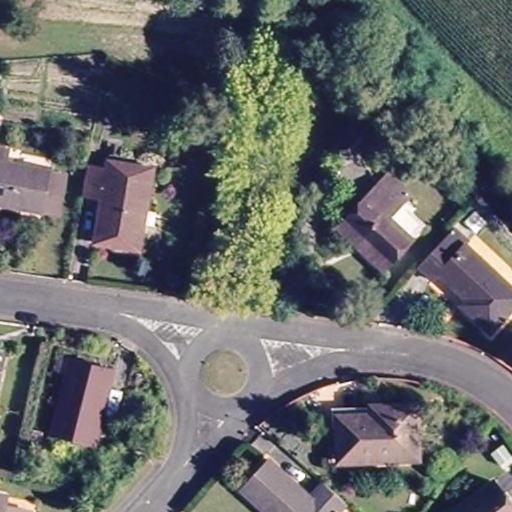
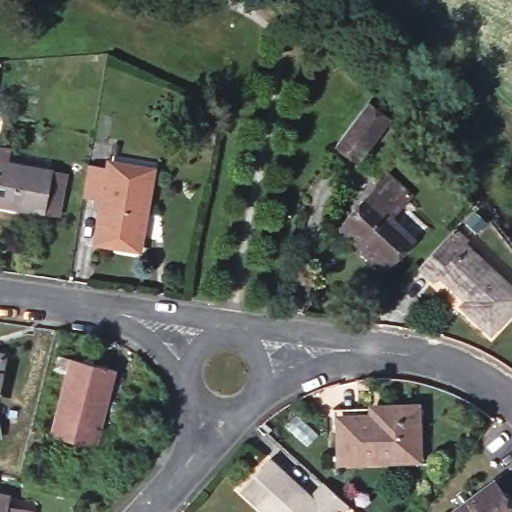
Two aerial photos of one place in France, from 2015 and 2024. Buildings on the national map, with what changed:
unchanged [(335,144),(367,102),(390,120),(357,161),(335,144)]
unchanged [(63,215),(0,202),(0,149),(14,151),(11,165),(71,177),(63,215)]
unchanged [(115,246),(95,242),(102,200),(78,196),(85,157),(155,171),(142,237),(140,251),(115,246)]
unchanged [(348,216),(389,173),(413,197),(393,219),(413,239),(383,272),(362,251),(337,227),(348,216)]
unchanged [(512,285),(512,305),(483,335),(459,312),(472,298),(441,269),(430,280),(418,267),(449,235),(461,249),(468,241),(512,285)]
unchanged [(0,376),(0,348),(5,350),(0,376)]
unchanged [(54,441),(70,360),(112,368),(96,450),(54,441)]
unchanged [(380,464),(344,464),(345,411),(421,411),(420,453),(420,465),(380,464)]
unchanged [(245,489),(271,460),(313,496),(328,480),(352,501),(341,512),(273,512),(245,489)]
unchanged [(503,478),(512,492),(512,512),(444,512),(503,478)]
unchanged [(0,489),(9,491),(8,507),(31,509),(31,512),(0,512),(0,489)]

